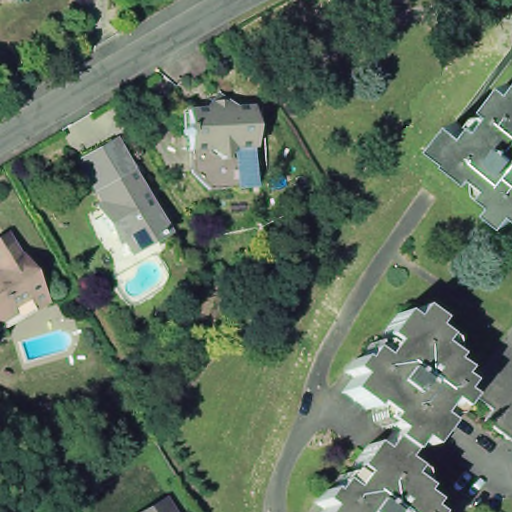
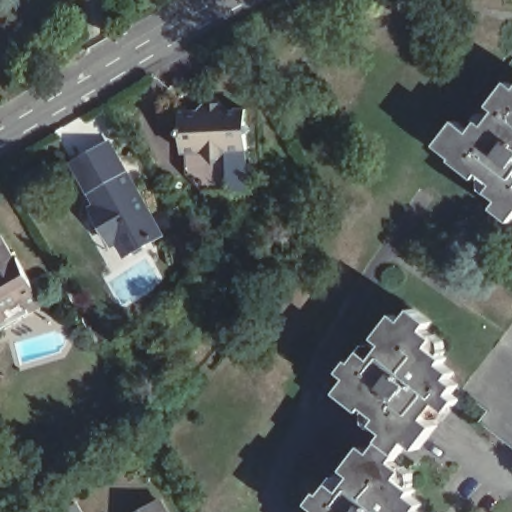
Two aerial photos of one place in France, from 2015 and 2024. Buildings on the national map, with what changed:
unchanged [(462,121),(477,132),(485,121),(492,126),(503,111),(497,105),(512,85),(512,216),(502,208),(507,200),(496,191),(502,184),(487,172),(482,178),(459,160),(460,158),(443,145),(462,121)]
unchanged [(206,106),(206,99),(214,90),(223,98),(223,105),(247,104),(249,144),(247,144),(229,145),(217,158),(205,146),(187,147),(185,147),(184,132),(178,128),(184,123),(183,107),(206,106)]
unchanged [(163,229),(127,250),(115,227),(108,231),(97,212),(110,204),(82,154),(103,142),(103,143),(110,139),(163,229)]
unchanged [(247,144),(249,184),(205,186),(188,169),(187,147),(205,146),(217,158),(229,145),(247,144)]
unchanged [(23,293),(5,304),(10,312),(0,318),(0,263),(0,231),(2,230),(15,253),(17,252),(42,294),(28,301),(23,293)]
unchanged [(436,345),(452,358),(448,363),(460,372),(456,378),(465,384),(463,386),(458,393),(465,398),(456,411),(445,402),(433,417),(443,425),(425,448),(415,441),(406,453),(388,440),(395,432),(383,423),(387,417),(372,406),(370,410),(346,392),(357,377),(349,371),(358,360),(361,362),(370,351),(380,359),(392,344),(383,337),(402,314),(410,320),(420,308),(437,321),(431,329),(442,338),(436,345)]
unchanged [(512,341),(512,432),(492,416),(497,409),(475,391),(512,341)]
unchanged [(400,461),(412,469),(405,477),(422,489),(417,494),(430,503),(425,509),(428,512),(324,512),(326,509),(317,503),(327,491),(330,494),(338,482),(350,491),(361,475),(352,469),(370,445),(380,452),(388,440),(406,453),(400,461)]
unchanged [(172,512),(148,512),(166,501),(172,512)]

